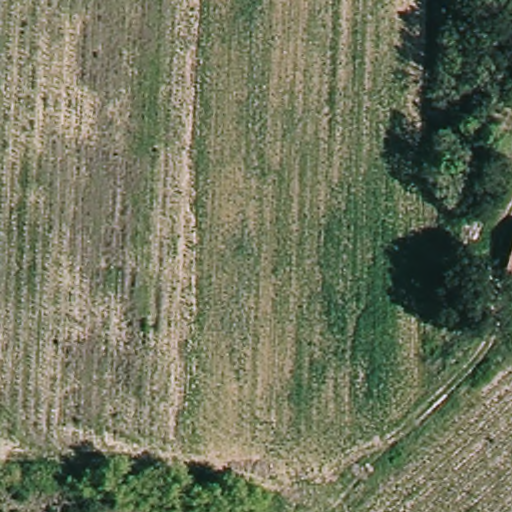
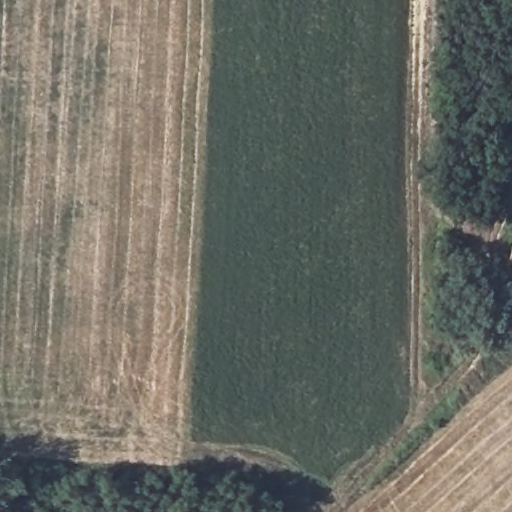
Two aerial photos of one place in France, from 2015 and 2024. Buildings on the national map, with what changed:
unchanged [(512,258),(512,277),(505,275),(512,258)]

